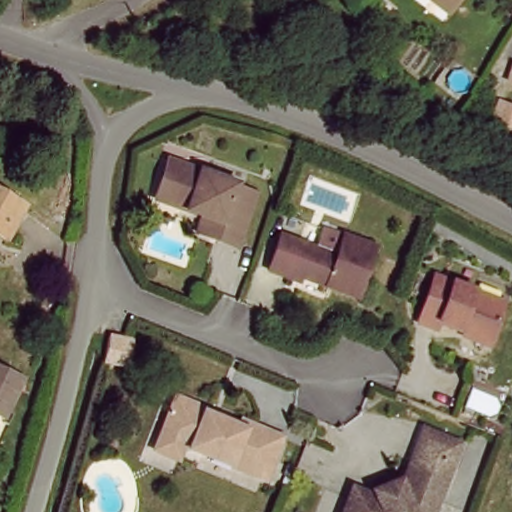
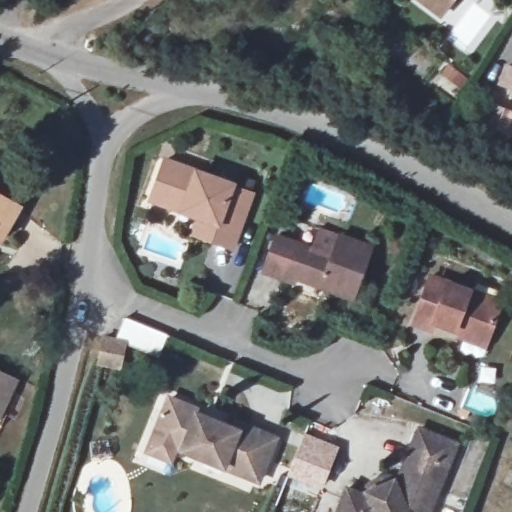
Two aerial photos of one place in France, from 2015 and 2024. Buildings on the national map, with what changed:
unchanged [(423,0),(451,0),(448,6),(442,14),(423,0)]
unchanged [(204,225),(187,218),(186,212),(157,201),(169,165),(236,189),(234,193),(253,200),(235,252),(216,245),(199,240),(204,225)]
unchanged [(0,236),(0,196),(18,207),(0,236)]
unchanged [(278,235),(335,254),(341,234),(372,245),(357,289),(327,280),(324,285),(289,273),(287,277),(267,270),(278,235)]
unchanged [(488,340),(435,322),(433,328),(414,321),(430,276),(501,300),(488,340)]
new [(104,342),(124,346),(119,370),(99,366),(104,342)]
unchanged [(0,413),(0,374),(16,382),(0,413)]
unchanged [(243,477),(173,451),(169,462),(144,452),(149,441),(164,405),(171,408),(175,401),(185,405),(183,411),(231,429),(233,424),(273,440),(261,471),(257,482),(243,477)]
unchanged [(368,493),(379,482),(398,477),(418,425),(453,439),(426,512),(412,512),(407,510),(406,512),(335,512),(345,484),(368,493)]
new [(303,432),(339,446),(321,492),(286,477),(303,432)]

